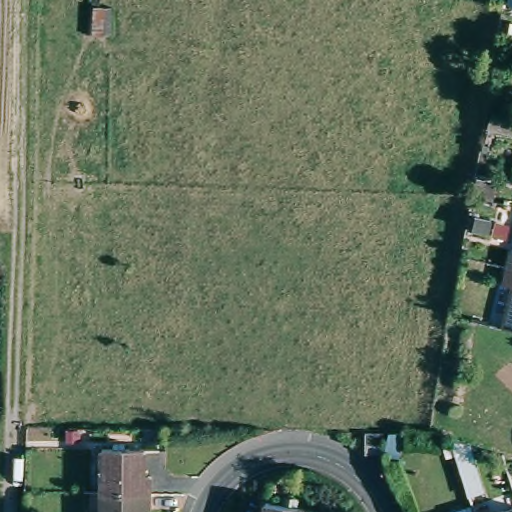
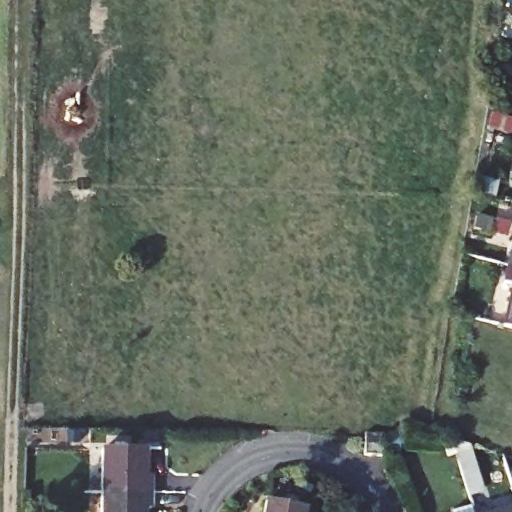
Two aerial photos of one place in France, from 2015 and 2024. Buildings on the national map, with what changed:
unchanged [(512,261),(512,267),(511,267),(512,261)]
unchanged [(512,285),(507,284),(511,267),(512,267),(512,285)]
unchanged [(512,294),(512,329),(504,327),(512,294)]
unchanged [(369,429),(387,429),(398,429),(407,429),(407,439),(403,439),(403,448),(387,448),(387,450),(370,450),(369,429)]
unchanged [(106,451),(148,452),(148,478),(154,478),(154,493),(105,493),(106,451)]
unchanged [(154,493),(153,509),(147,509),(147,512),(105,512),(105,493),(154,493)]
unchanged [(269,500),(308,506),(306,512),(267,512),(269,500)]
unchanged [(454,510),(474,504),(476,510),(476,512),(454,512),(454,510)]
unchanged [(512,509),(512,512),(500,512),(512,509)]

